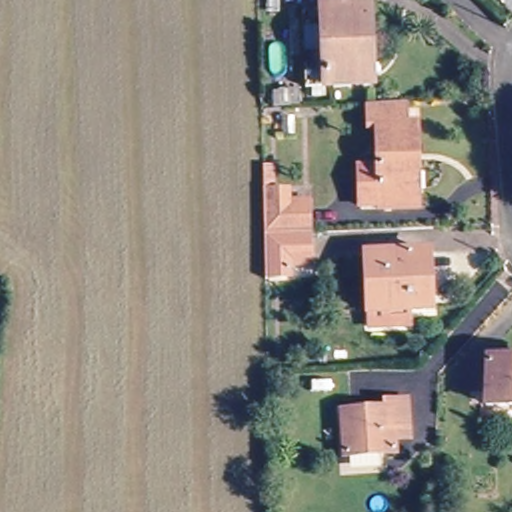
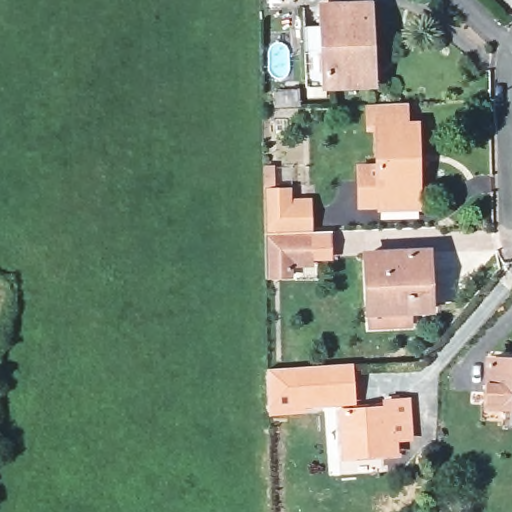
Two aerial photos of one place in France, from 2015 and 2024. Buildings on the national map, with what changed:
unchanged [(331,18),(372,19),(372,95),(310,93),(311,40),(331,41),(331,18)]
unchanged [(363,211),(364,167),(378,167),(378,128),(367,127),(367,106),(407,106),(407,129),(420,130),(419,199),(418,212),(382,211),(363,211)]
unchanged [(308,240),(264,240),(263,172),(270,172),(270,185),(286,186),(285,204),(308,204),(308,212),(308,240)]
unchanged [(289,271),(289,282),(264,282),(264,240),(308,240),(308,263),(308,271),(289,271)]
unchanged [(425,307),(367,307),(368,252),(426,252),(425,307)]
new [(357,404),(305,407),(306,414),(270,416),(267,369),(354,363),(357,404)]
unchanged [(512,406),(490,405),(491,364),(512,365),(512,406)]
unchanged [(344,414),(385,412),(385,406),(409,406),(408,446),(385,447),(385,459),(344,460),(344,414)]

